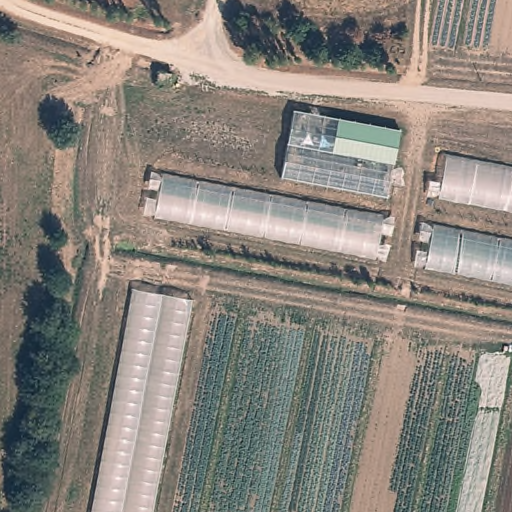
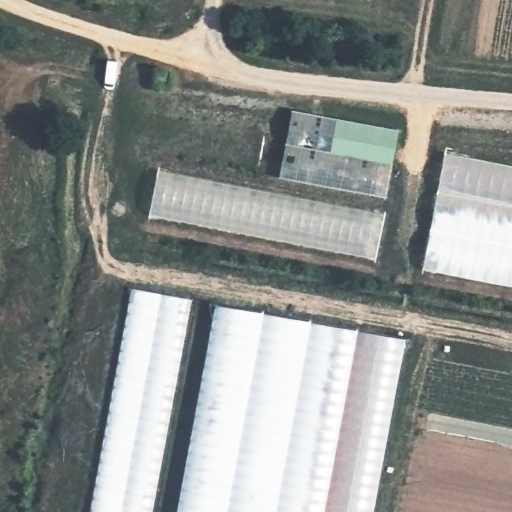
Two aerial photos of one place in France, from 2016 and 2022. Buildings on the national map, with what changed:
unchanged [(401,130),(389,199),(278,178),(290,110),(401,130)]
unchanged [(512,216),(423,199),(431,156),(512,171),(512,216)]
unchanged [(395,221),(387,265),(151,219),(157,194),(147,191),(150,172),(395,221)]
unchanged [(426,244),(417,242),(420,225),(512,241),(512,289),(421,272),(426,244)]
new [(400,342),(369,512),(174,512),(212,307),(400,342)]

